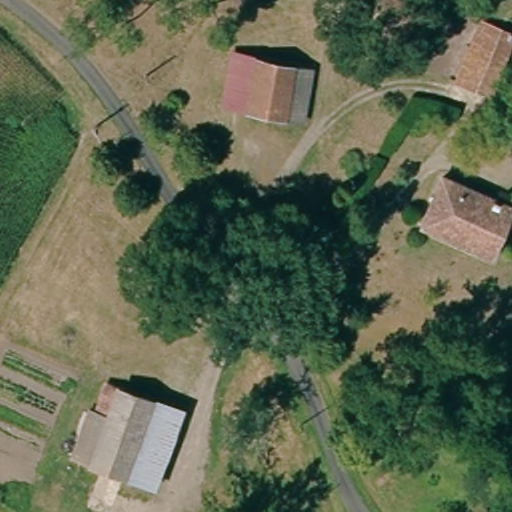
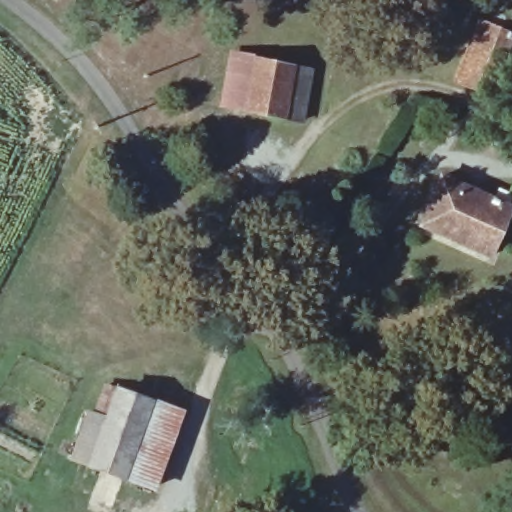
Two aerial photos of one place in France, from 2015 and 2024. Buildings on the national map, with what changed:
unchanged [(482,25),(512,36),(512,62),(510,69),(505,67),(499,84),(493,82),(490,96),(463,88),(482,25)]
unchanged [(318,70),(308,125),(224,107),(232,54),(318,70)]
unchanged [(506,202),(491,250),(421,230),(436,181),(506,202)]
unchanged [(91,467),(71,455),(89,410),(95,412),(105,385),(117,388),(155,401),(187,410),(157,495),(91,467)]

